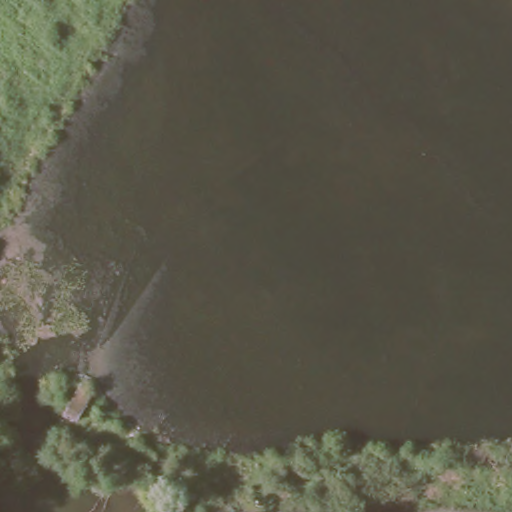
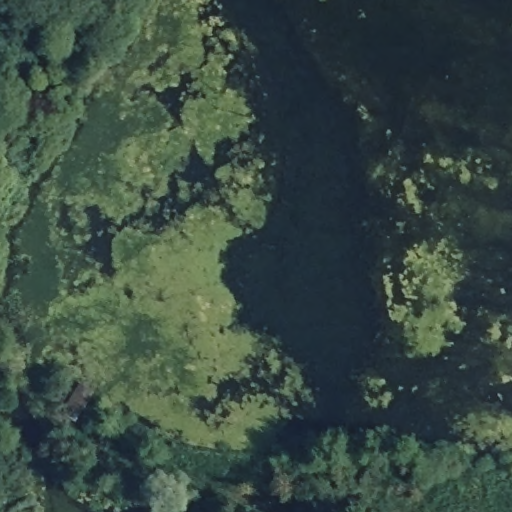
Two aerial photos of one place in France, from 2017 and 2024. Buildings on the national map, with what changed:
unchanged [(79,421),(68,412),(86,385),(99,394),(79,421)]

